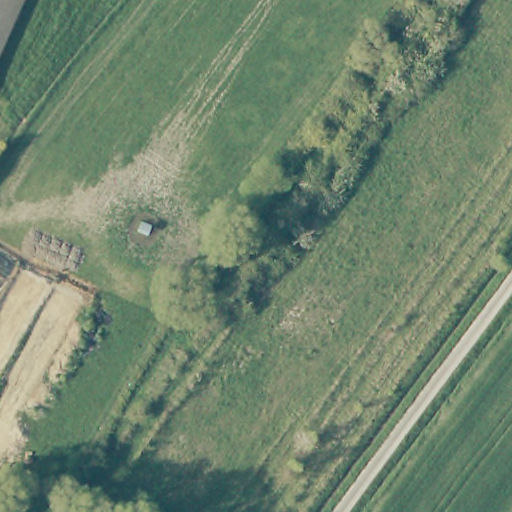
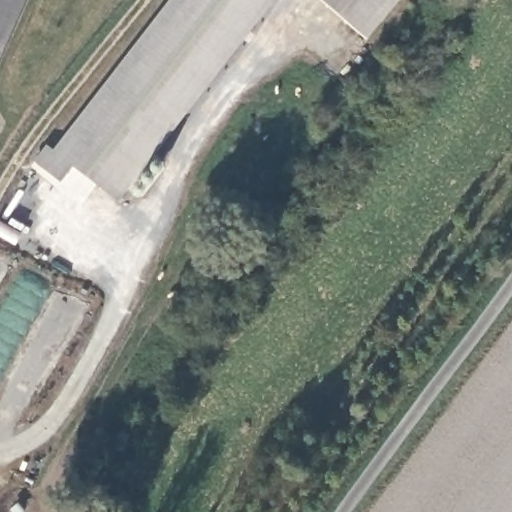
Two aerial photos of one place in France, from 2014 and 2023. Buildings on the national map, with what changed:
unchanged [(20,0),(0,46),(0,0),(20,0)]
new [(45,144),(52,149),(169,0),(273,0),(116,202),(72,165),(60,181),(33,159),(45,144)]
new [(320,0),(399,0),(365,39),(320,0)]

